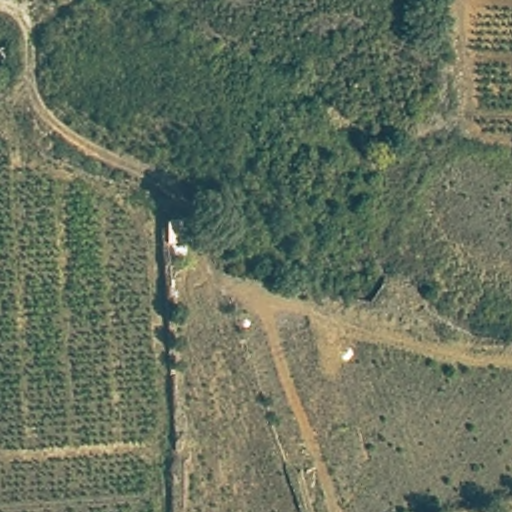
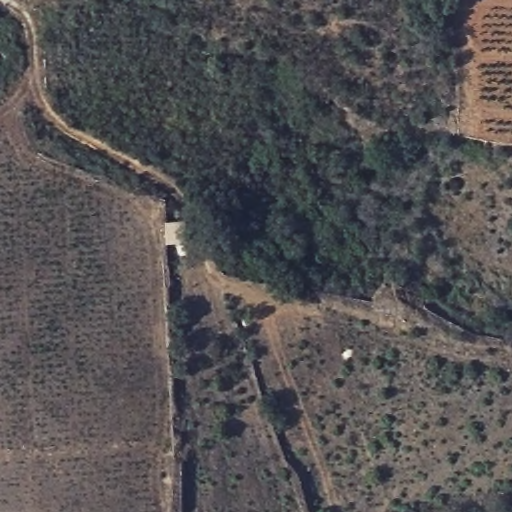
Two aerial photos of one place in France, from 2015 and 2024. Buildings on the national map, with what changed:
unchanged [(161,243),(159,219),(181,214),(185,242),(161,243)]

